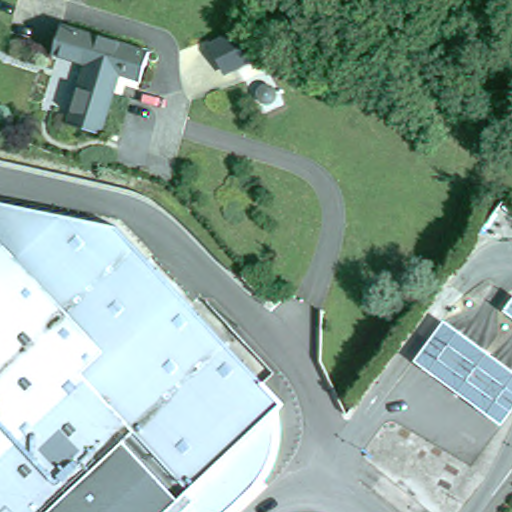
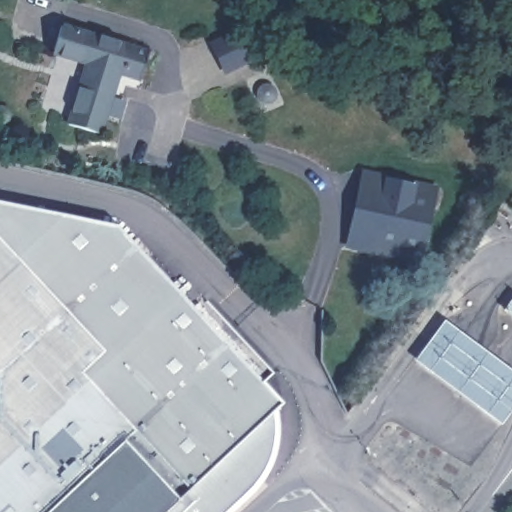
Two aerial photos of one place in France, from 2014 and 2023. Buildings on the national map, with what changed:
unchanged [(65,25),(153,50),(145,78),(118,71),(112,90),(117,92),(105,133),(72,123),(92,63),(57,52),(65,25)]
new [(421,264),(345,248),(361,170),(438,186),(421,264)]
unchanged [(119,225),(279,402),(275,430),(273,448),(269,462),(263,478),(226,512),(192,512),(199,506),(103,395),(126,374),(0,240),(0,201),(119,225)]
unchanged [(126,374),(103,395),(199,506),(192,512),(0,512),(0,240),(126,374)]
unchanged [(512,366),(512,418),(505,429),(418,360),(448,320),(512,366)]

